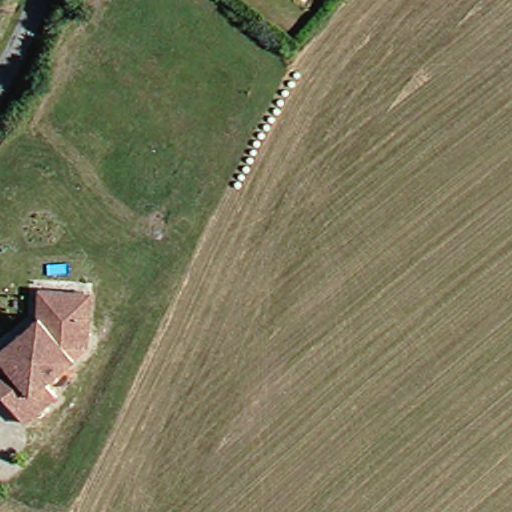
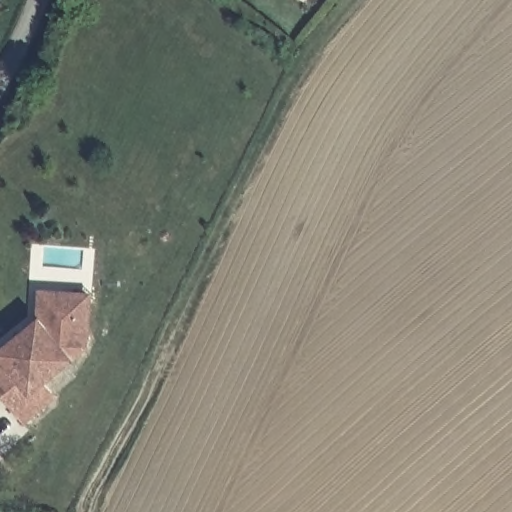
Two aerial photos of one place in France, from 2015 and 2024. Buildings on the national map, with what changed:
unchanged [(97,288),(94,329),(93,344),(52,379),(65,393),(32,421),(0,383),(0,350),(2,348),(41,312),(44,284),(90,287),(97,288)]

